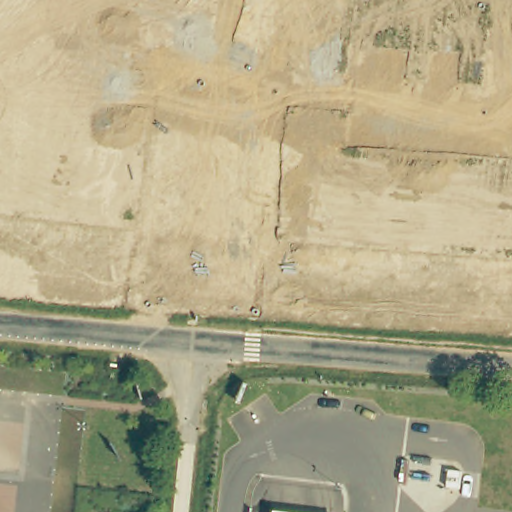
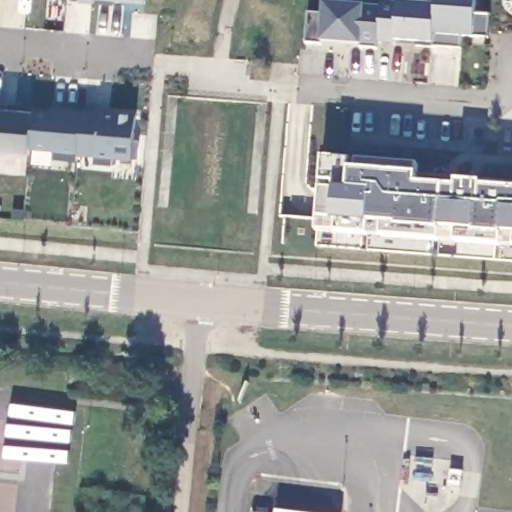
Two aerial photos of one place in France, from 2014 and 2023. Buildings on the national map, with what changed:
new [(113,5),(80,2),(80,0),(115,0),(113,5)]
new [(146,2),(120,0),(146,0),(146,2)]
new [(397,2),(435,5),(435,0),(476,0),(476,16),(490,16),(488,40),(474,39),(462,39),(461,49),(379,42),(381,1),(397,2)]
new [(501,0),(512,0),(512,3),(501,2),(501,0)]
new [(379,42),(377,49),(362,47),(321,43),(306,43),(307,14),(322,15),(323,3),(365,6),(381,6),(379,42)]
new [(33,112),(33,107),(53,109),(54,106),(99,111),(139,114),(134,160),(114,159),(113,166),(96,165),(95,157),(79,155),(79,161),(55,159),(55,152),(29,149),(28,154),(0,151),(0,109),(33,112)]
new [(322,158),(416,166),(417,176),(416,185),(456,187),(456,182),(481,182),(481,187),(512,190),(512,246),(316,231),(322,158)]

